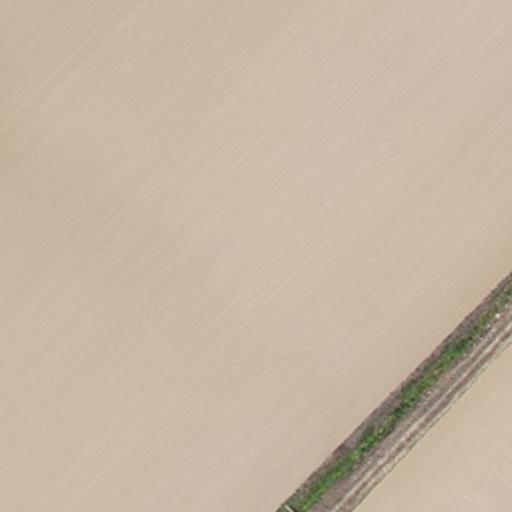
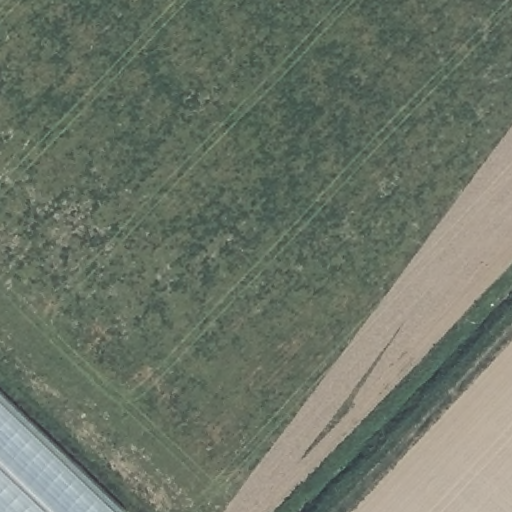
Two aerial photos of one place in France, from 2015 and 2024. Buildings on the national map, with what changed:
new [(0,512),(0,388),(130,511),(129,512),(0,512)]

